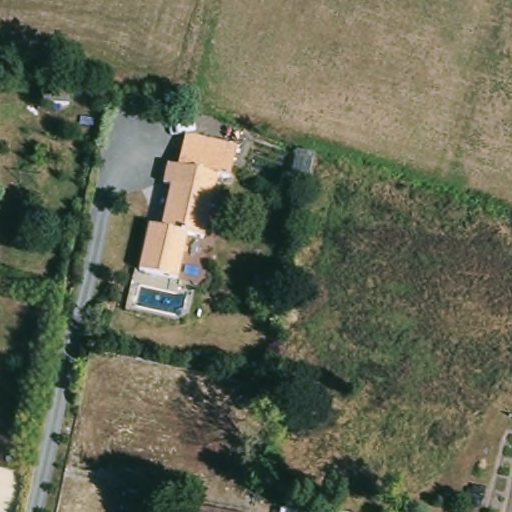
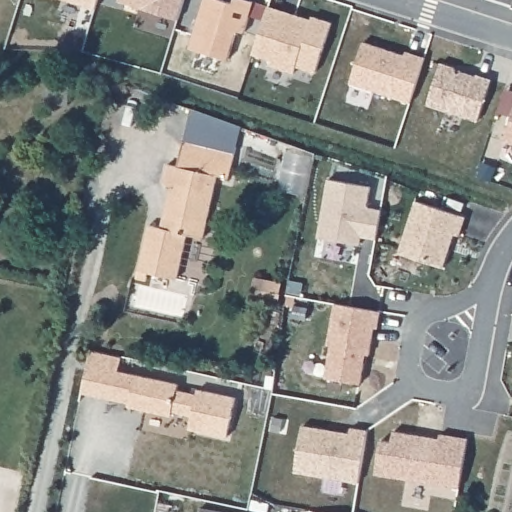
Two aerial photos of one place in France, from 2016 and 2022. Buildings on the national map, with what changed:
new [(66,0),(99,0),(96,9),(66,0)]
new [(120,2),(120,0),(185,0),(179,20),(120,2)]
new [(269,7),(312,21),(313,17),(332,23),(316,72),(297,67),(295,74),(270,66),(272,60),(254,55),(269,7)]
new [(364,42),(406,56),(407,52),(426,58),(411,103),(351,84),(364,42)]
new [(441,63),(455,67),(454,70),(477,77),(477,75),(492,80),(478,121),(427,105),(441,63)]
unchanged [(74,87),(70,106),(45,101),(49,82),(74,87)]
new [(512,119),(512,143),(505,141),(512,119)]
unchanged [(232,147),(223,179),(173,169),(182,137),(232,147)]
new [(287,152),(306,156),(301,181),(282,177),(287,152)]
unchanged [(223,179),(209,242),(193,238),(184,282),(145,274),(155,228),(167,231),(177,189),(169,187),(172,171),(173,169),(223,179)]
new [(327,179),(372,187),(368,207),(382,210),(377,240),(362,238),(362,245),(318,236),(327,179)]
new [(416,201),(466,217),(460,236),(454,234),(443,267),(399,253),(416,201)]
new [(254,296),(285,302),(282,320),(250,313),(254,296)]
new [(325,377),(331,345),(327,345),(335,303),(382,311),(380,328),(374,328),(370,355),(366,355),(361,383),(325,377)]
new [(228,437),(188,429),(191,415),(172,411),(172,415),(128,407),(129,402),(81,392),(90,350),(122,357),(120,370),(179,382),(179,389),(197,393),(197,389),(236,397),(228,437)]
new [(303,426),(351,434),(352,428),(368,431),(360,482),(296,472),(303,426)]
new [(376,475),(381,440),(392,441),(393,431),(440,437),(440,433),(469,437),(460,488),(376,475)]
unchanged [(222,512),(201,512),(202,508),(222,512)]

